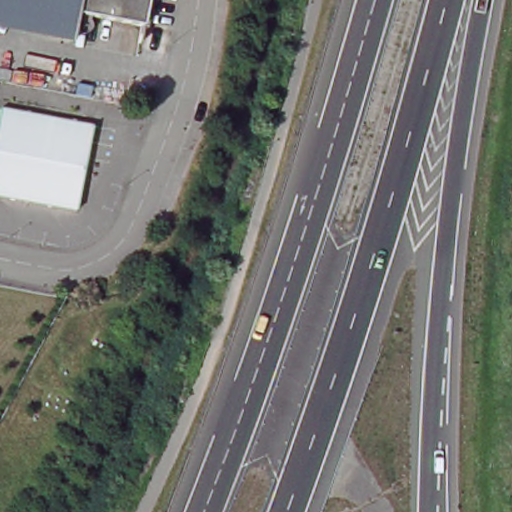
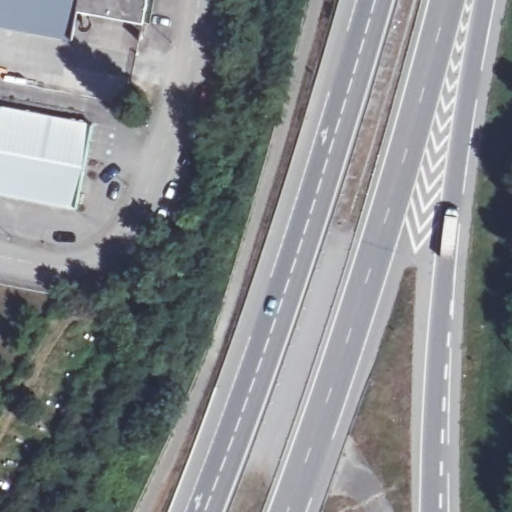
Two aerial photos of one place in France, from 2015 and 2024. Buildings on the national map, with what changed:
unchanged [(0,0),(156,0),(150,27),(75,10),(72,25),(0,9),(0,0)]
unchanged [(0,27),(0,9),(72,25),(68,42),(0,27)]
unchanged [(74,211),(0,195),(0,109),(90,127),(74,211)]

